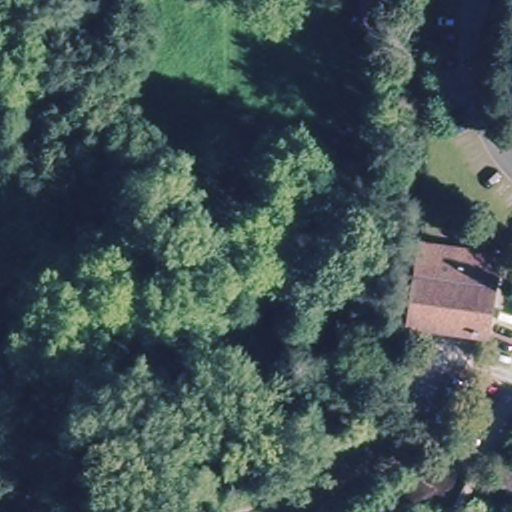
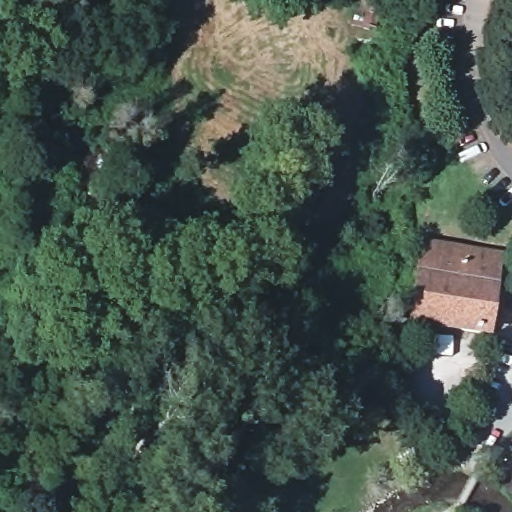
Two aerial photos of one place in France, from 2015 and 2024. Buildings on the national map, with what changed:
unchanged [(367,2),(363,1),(363,0),(381,0),(375,26),(362,23),(367,2)]
unchanged [(496,256),(484,334),(410,323),(421,244),(496,256)]
unchanged [(512,461),(512,484),(501,474),(512,461)]

